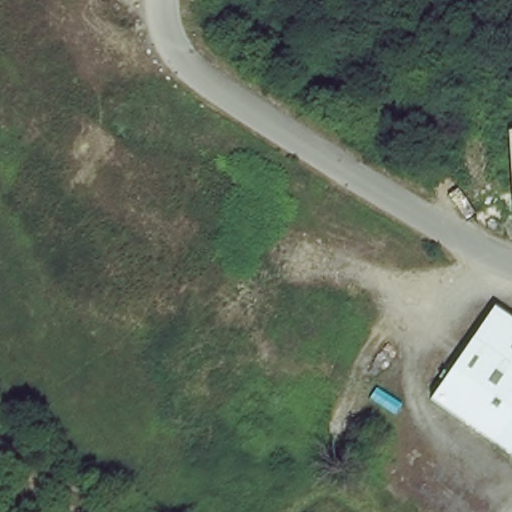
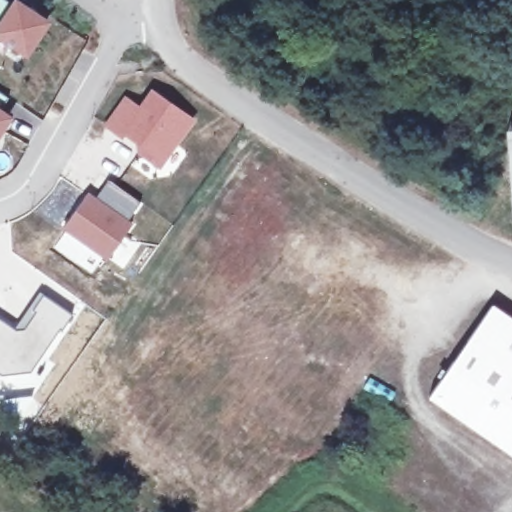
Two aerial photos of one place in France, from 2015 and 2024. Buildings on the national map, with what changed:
new [(12,7),(15,2),(46,24),(26,54),(0,37),(0,0),(1,0),(12,7)]
new [(140,153),(144,146),(124,133),(120,137),(106,127),(126,99),(141,110),(153,92),(193,120),(159,167),(140,153)]
new [(0,110),(0,93),(7,99),(0,110)]
new [(9,118),(0,131),(0,112),(9,118)]
unchanged [(512,130),(512,222),(507,222),(501,130),(512,130)]
new [(62,230),(90,194),(133,225),(106,260),(62,230)]
new [(31,371),(0,375),(0,320),(17,331),(41,295),(71,315),(31,371)]
unchanged [(512,321),(512,457),(428,398),(491,308),(512,321)]

